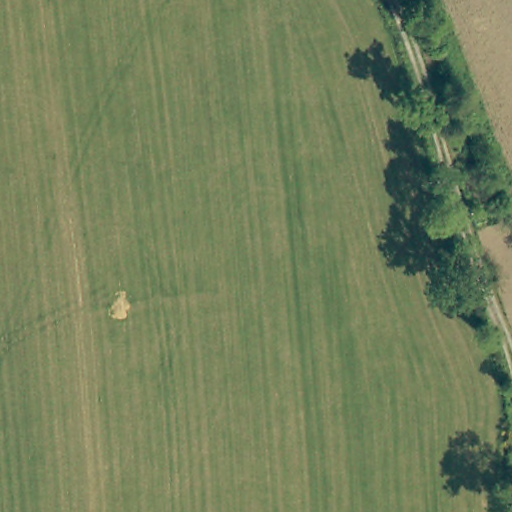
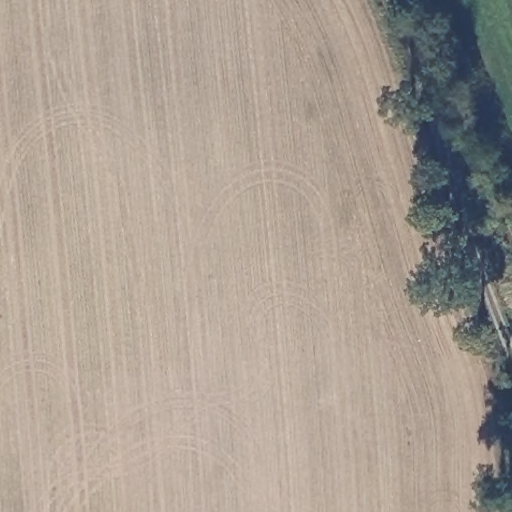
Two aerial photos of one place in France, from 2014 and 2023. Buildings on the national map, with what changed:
[]

